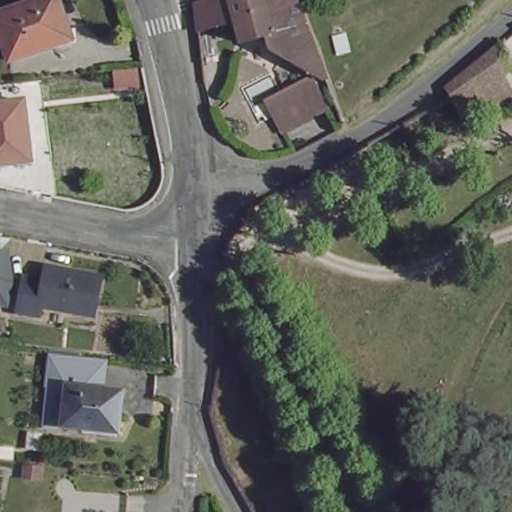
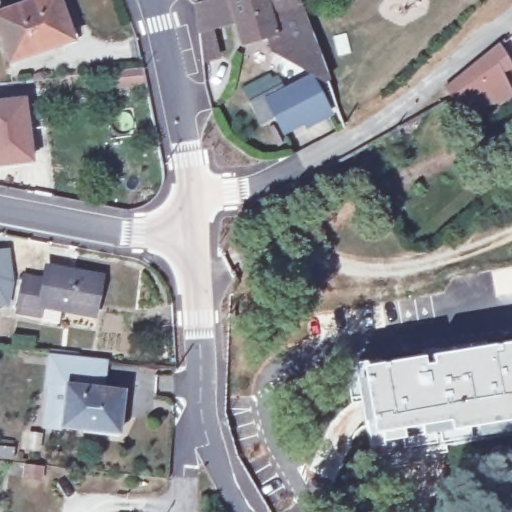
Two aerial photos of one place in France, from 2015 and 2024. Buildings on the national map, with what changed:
unchanged [(9,61),(0,40),(0,16),(38,0),(55,0),(70,37),(9,61)]
unchanged [(312,39),(316,48),(294,59),(274,52),(266,29),(240,38),(232,6),(201,14),(197,0),(296,0),(312,39)]
unchanged [(509,67),(500,75),(508,88),(457,117),(446,97),(439,86),(494,44),(509,67)]
unchanged [(148,59),(149,71),(125,75),(123,63),(148,59)]
unchanged [(324,100),(283,125),(268,97),(310,75),(324,100)]
unchanged [(0,163),(0,103),(18,101),(26,160),(0,163)]
unchanged [(0,303),(0,242),(1,242),(10,306),(0,303)]
unchanged [(106,278),(100,314),(48,305),(46,314),(24,310),(29,277),(49,280),(51,268),(106,278)]
new [(383,361),(512,340),(512,426),(456,436),(456,433),(369,447),(354,363),(383,361)]
unchanged [(128,392),(68,384),(61,430),(38,427),(49,350),(148,365),(144,407),(125,405),(128,392)]
unchanged [(68,384),(128,392),(125,405),(118,438),(61,430),(68,384)]
unchanged [(40,431),(39,443),(24,441),(26,429),(40,431)]
unchanged [(12,458),(0,456),(0,445),(13,447),(12,458)]
unchanged [(38,464),(36,475),(22,472),(23,462),(38,464)]

